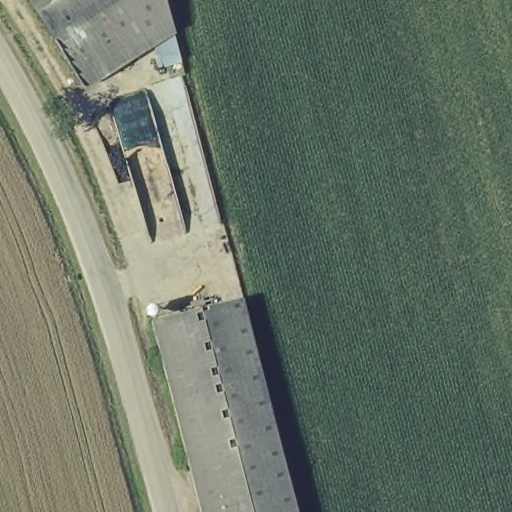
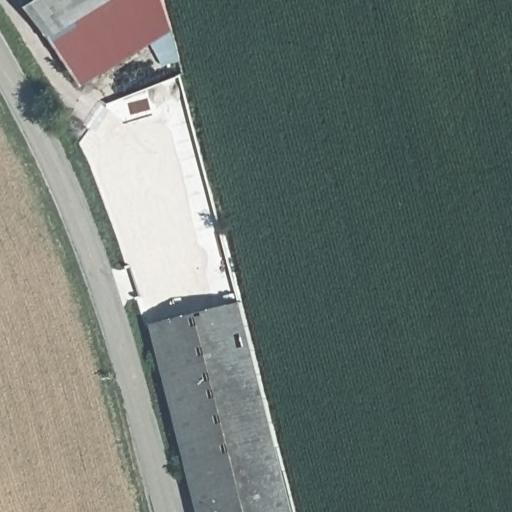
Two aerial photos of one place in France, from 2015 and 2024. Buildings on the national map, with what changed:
unchanged [(174,25),(77,84),(30,0),(166,0),(174,25)]
unchanged [(251,302),(305,512),(208,512),(162,325),(251,302)]

